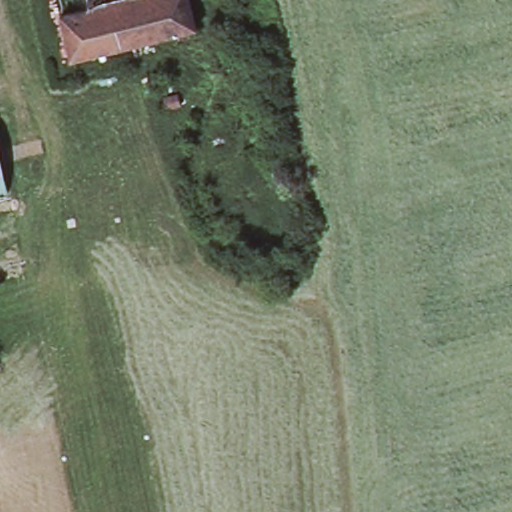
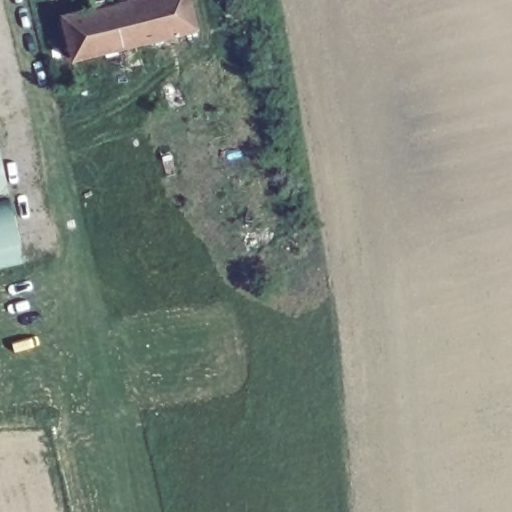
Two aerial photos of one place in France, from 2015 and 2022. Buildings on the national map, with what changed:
unchanged [(71,59),(60,15),(89,7),(120,0),(189,0),(196,28),(71,59)]
demolished [(88,0),(120,0),(89,7),(88,0)]
unchanged [(8,192),(0,194),(0,158),(8,192)]
new [(10,199),(23,263),(0,268),(0,201),(10,199)]

